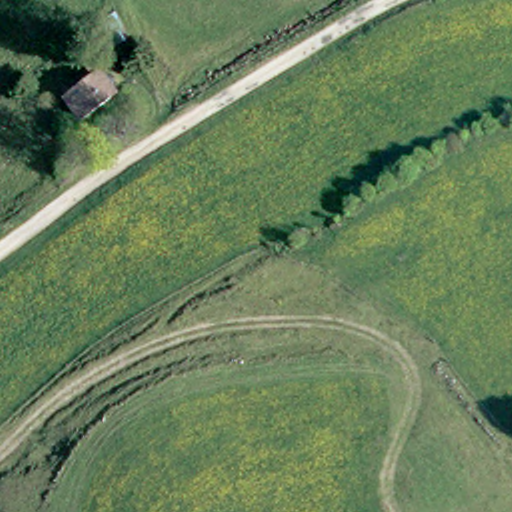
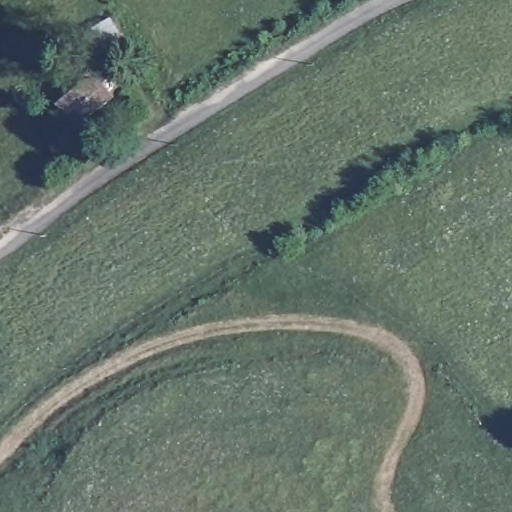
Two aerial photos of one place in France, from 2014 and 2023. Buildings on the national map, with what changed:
unchanged [(56,96),(97,70),(116,100),(76,127),(56,96)]

